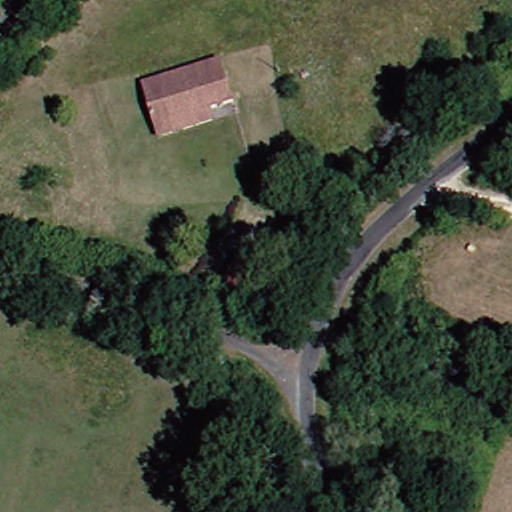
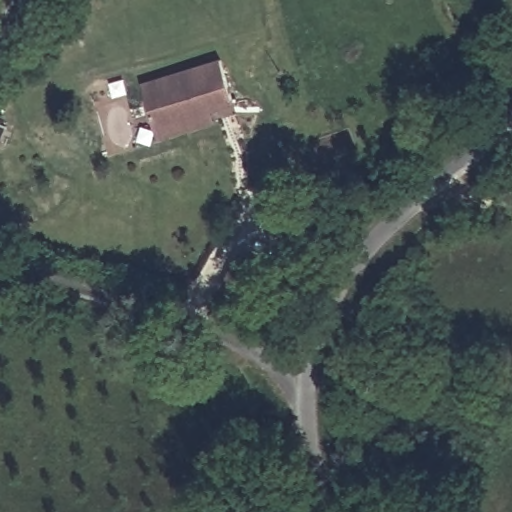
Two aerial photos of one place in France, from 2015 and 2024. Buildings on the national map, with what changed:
unchanged [(170,142),(165,129),(152,87),(232,60),(246,105),(225,112),(227,124),(170,142)]
unchanged [(252,297),(232,293),(239,256),(264,261),(252,297)]

